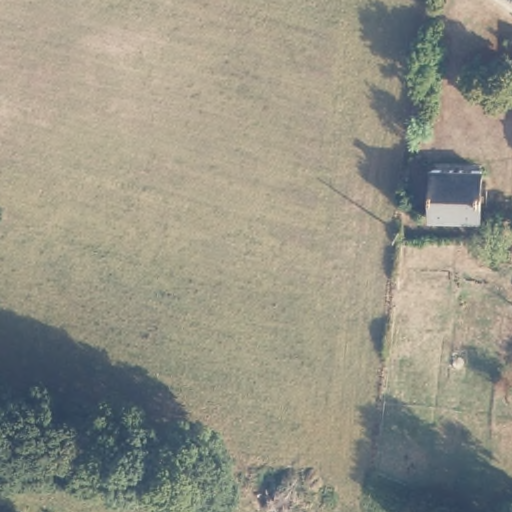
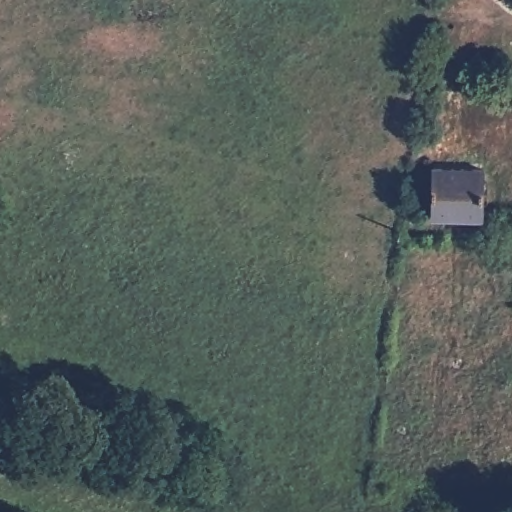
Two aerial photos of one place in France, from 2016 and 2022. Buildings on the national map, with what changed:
unchanged [(432,212),(433,164),(485,165),(483,213),(432,212)]

